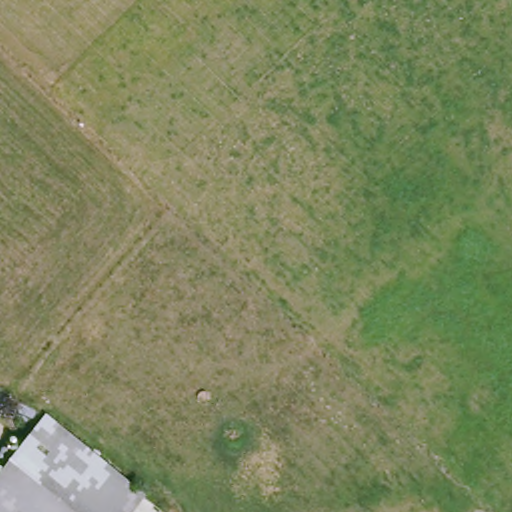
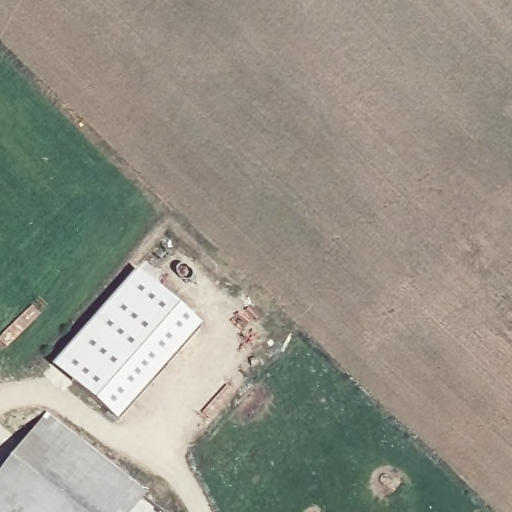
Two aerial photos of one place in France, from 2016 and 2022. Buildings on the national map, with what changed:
new [(136,271),(201,326),(116,422),(52,367),(136,271)]
unchanged [(145,495),(130,512),(0,512),(0,474),(47,416),(145,495)]
unchanged [(166,512),(130,512),(145,495),(166,512)]

